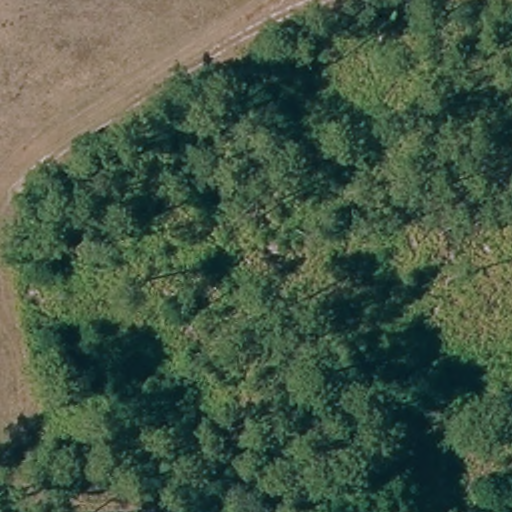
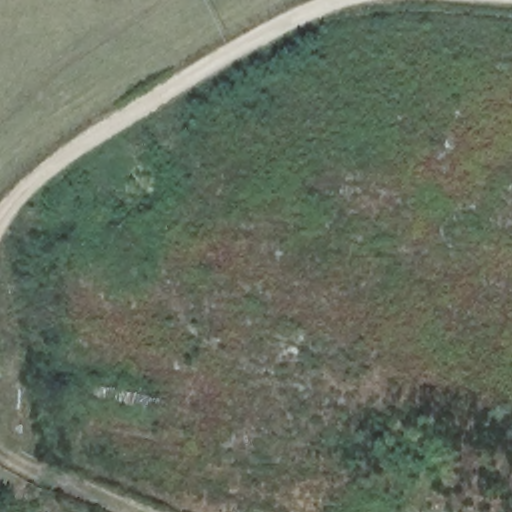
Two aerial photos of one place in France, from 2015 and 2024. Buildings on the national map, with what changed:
unchanged [(433,437),(428,450),(415,445),(417,434),(417,431),(433,437)]

